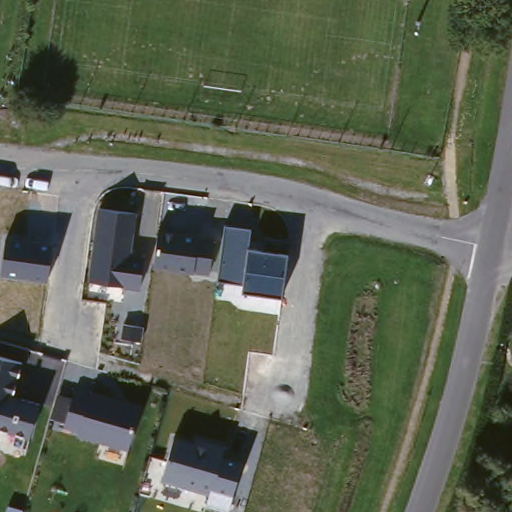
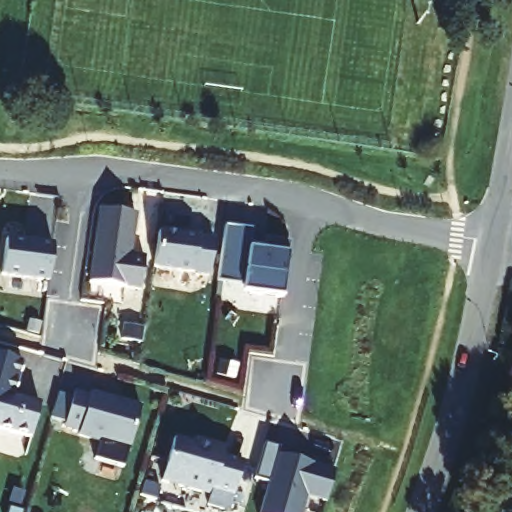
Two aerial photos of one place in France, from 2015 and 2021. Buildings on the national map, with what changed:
unchanged [(88,282),(98,210),(134,214),(128,256),(143,257),(139,288),(88,282)]
unchanged [(242,293),(243,284),(217,280),(224,227),(250,230),(248,251),(286,257),(282,297),(242,293)]
unchanged [(154,267),(157,232),(213,238),(209,273),(154,267)]
unchanged [(0,275),(0,264),(4,237),(50,244),(48,282),(0,275)]
unchanged [(12,399),(39,406),(30,439),(0,430),(0,359),(23,365),(12,399)]
unchanged [(85,398),(87,395),(139,411),(128,450),(76,436),(77,432),(64,428),(72,395),(85,398)]
unchanged [(228,511),(203,503),(206,495),(162,481),(174,437),(224,452),(222,457),(241,463),(228,511)]
new [(279,448),(278,455),(335,470),(326,506),(307,500),(304,512),(261,512),(268,483),(255,481),(265,445),(279,448)]

